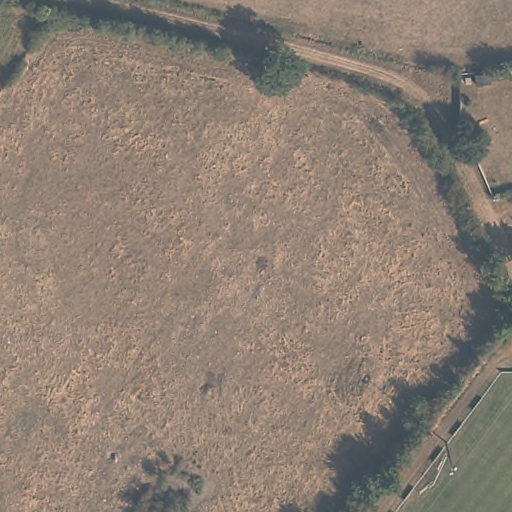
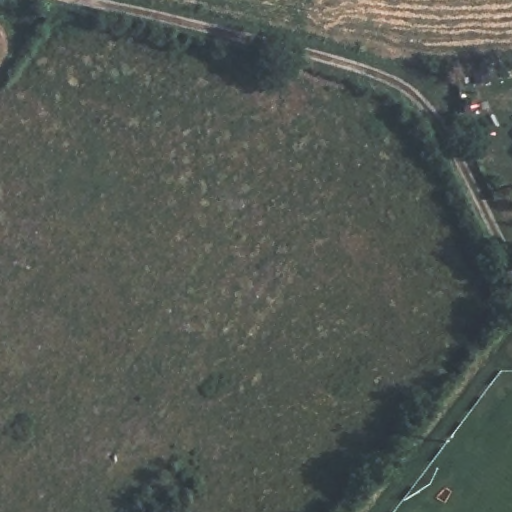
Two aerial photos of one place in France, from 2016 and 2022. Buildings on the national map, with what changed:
[]

